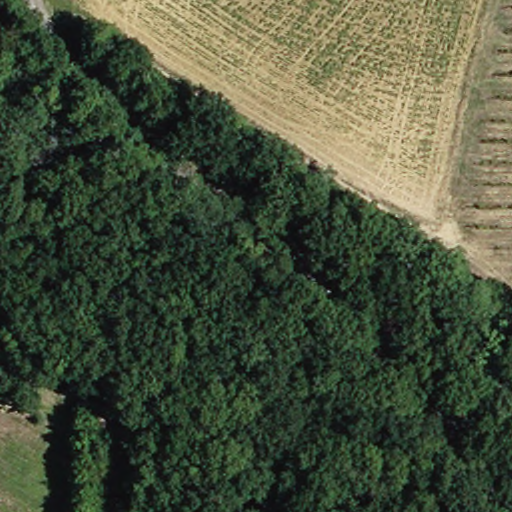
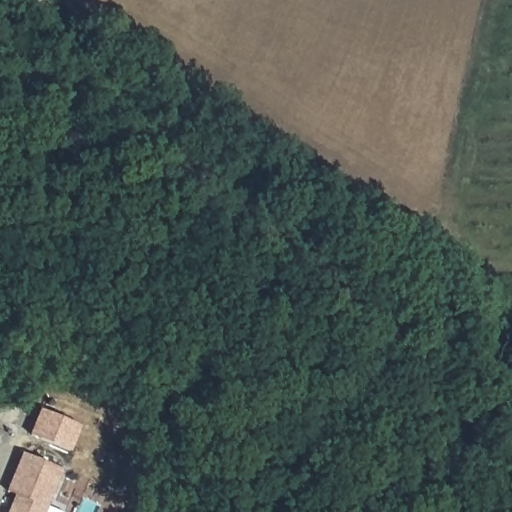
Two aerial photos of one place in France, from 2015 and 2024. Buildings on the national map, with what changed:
new [(70,452),(27,435),(38,408),(80,427),(70,452)]
new [(10,512),(17,495),(8,492),(24,453),(63,469),(46,512),(10,512)]

